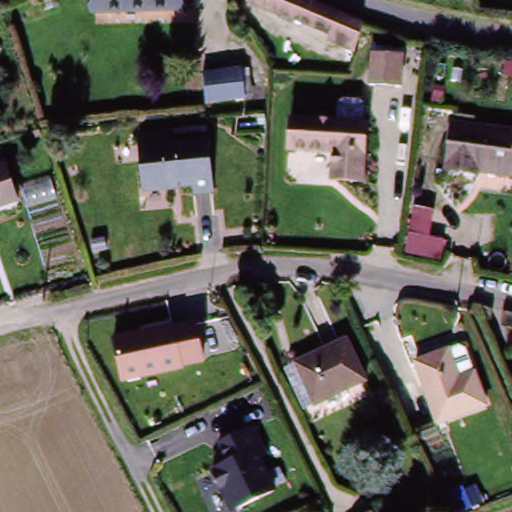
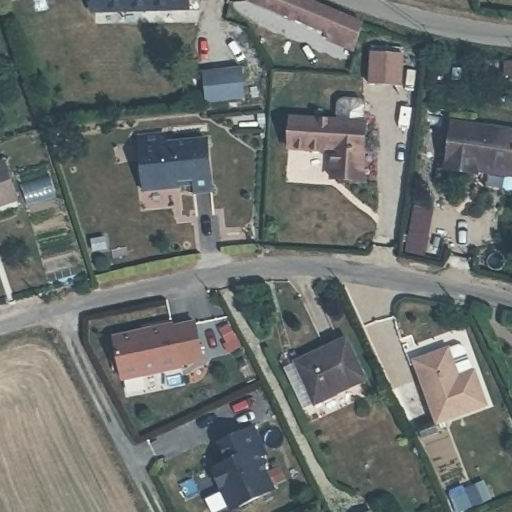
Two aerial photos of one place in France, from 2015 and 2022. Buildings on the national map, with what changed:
unchanged [(92,0),(183,0),(183,10),(93,15),(92,0)]
unchanged [(328,44),(331,34),(250,4),(251,0),(291,0),(363,27),(352,54),(328,44)]
unchanged [(397,87),(365,83),(369,51),(401,56),(397,87)]
unchanged [(248,96),(208,99),(206,68),(247,65),(248,96)]
unchanged [(368,115),(367,129),(369,129),(364,184),(333,181),(335,155),(293,151),(295,122),(341,126),(341,109),(348,105),(364,106),(368,115)]
unchanged [(472,172),(443,167),(449,122),(512,130),(512,168),(511,168),(509,175),(473,170),(472,172)]
unchanged [(193,195),(193,186),(139,191),(134,135),(159,132),(161,142),(204,138),(208,185),(209,192),(193,195)]
unchanged [(4,162),(16,202),(0,207),(0,164),(4,162)]
unchanged [(105,382),(99,357),(143,343),(139,332),(163,323),(167,335),(191,330),(198,354),(105,382)]
unchanged [(284,371),(294,365),(344,340),(368,382),(318,407),(306,413),(284,371)]
unchanged [(491,398),(443,423),(412,367),(463,342),(491,398)]
unchanged [(226,463),(216,442),(255,425),(268,453),(261,457),(275,492),(231,512),(213,470),(226,463)]
unchanged [(374,507),(376,512),(364,512),(374,507)]

